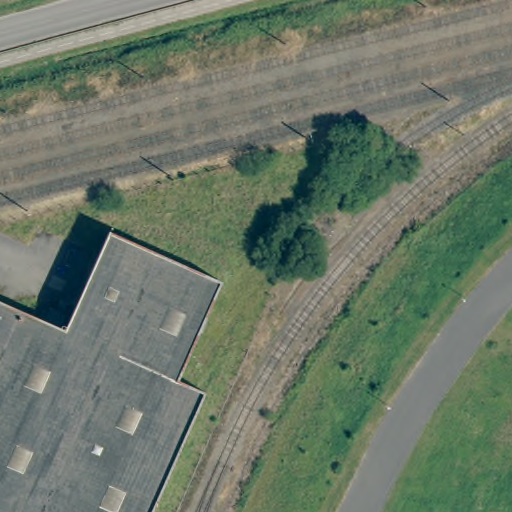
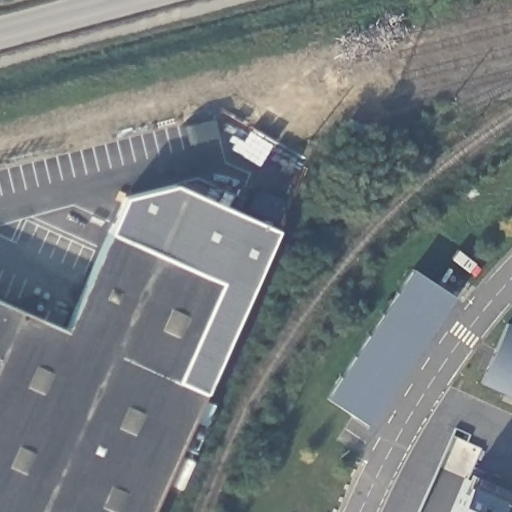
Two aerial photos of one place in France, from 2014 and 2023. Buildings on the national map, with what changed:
new [(175,185),(275,231),(203,391),(179,379),(223,281),(110,230),(124,197),(175,185)]
unchanged [(66,328),(110,230),(223,281),(179,379),(207,393),(153,512),(0,512),(0,299),(66,328)]
new [(413,269),(454,296),(366,425),(327,398),(413,269)]
new [(512,328),(512,397),(480,384),(507,325),(512,328)]
new [(469,474),(512,494),(512,512),(454,512),(465,485),(469,474)]

